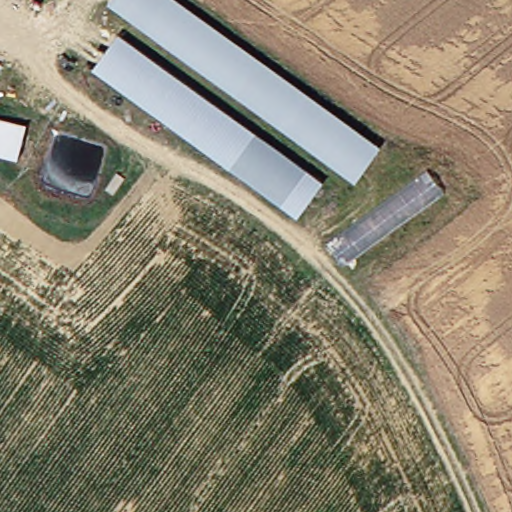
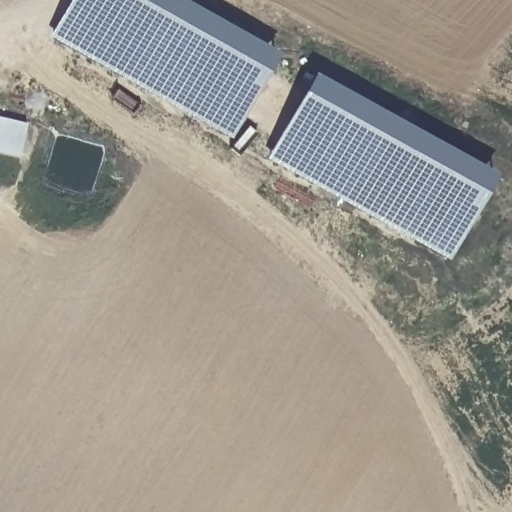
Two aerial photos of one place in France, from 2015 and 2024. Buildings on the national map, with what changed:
new [(71,0),(181,0),(279,56),(230,139),(49,37),(71,0)]
demolished [(114,5),(117,0),(181,0),(384,146),(361,182),(114,5)]
demolished [(328,182),(301,217),(99,69),(125,37),(328,182)]
new [(314,75),(497,178),(448,262),(267,159),(314,75)]
unchanged [(21,155),(0,151),(0,118),(29,125),(21,155)]

